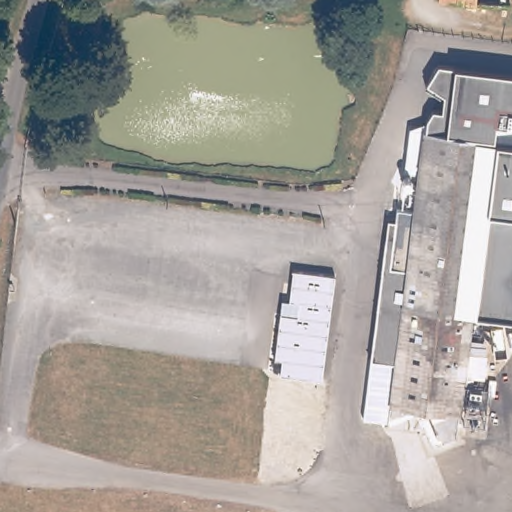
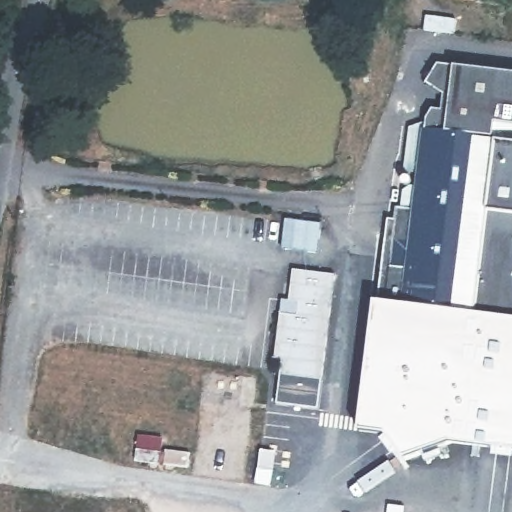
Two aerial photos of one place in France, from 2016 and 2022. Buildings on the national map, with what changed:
unchanged [(463,403),(459,413),(391,405),(388,420),(364,417),(371,358),(389,219),(395,219),(396,207),(402,207),(405,187),(415,187),(417,171),(405,169),(409,127),(426,119),(433,109),(441,110),(443,95),(427,81),(439,62),(455,66),(512,71),(512,317),(475,313),(463,403)]
unchanged [(293,267),(334,273),(331,287),(318,377),(276,372),(278,356),(271,355),(278,310),(279,296),(287,297),(289,282),(293,267)]
new [(391,405),(459,413),(463,403),(475,313),(512,317),(512,449),(448,442),(403,458),(384,432),(362,430),(364,417),(388,420),(391,405)]
new [(318,377),(313,408),(271,401),(276,371),(318,377)]

